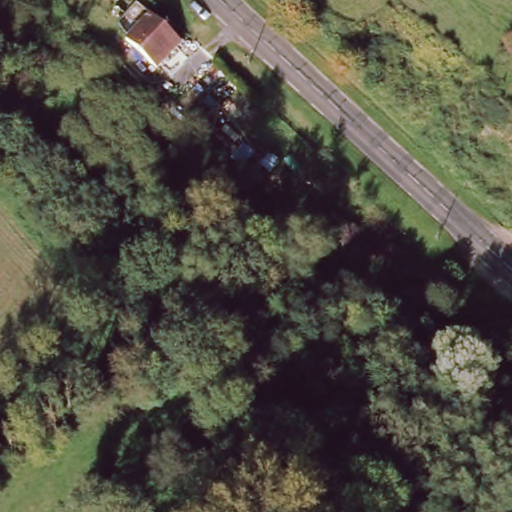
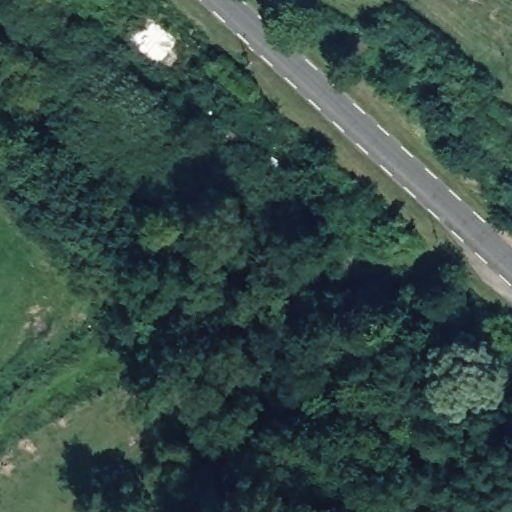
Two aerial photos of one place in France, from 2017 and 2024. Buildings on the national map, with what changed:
demolished [(183,41),(159,64),(131,34),(152,14),(183,41)]

